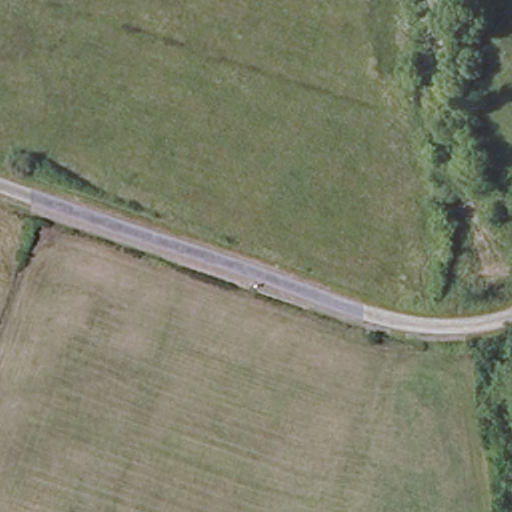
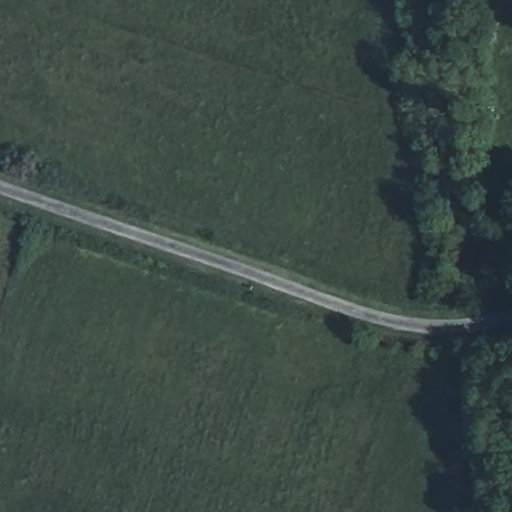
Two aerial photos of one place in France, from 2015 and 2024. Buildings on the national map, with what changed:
[]

